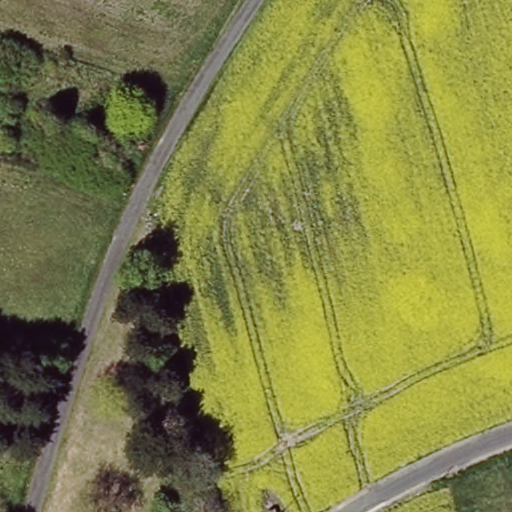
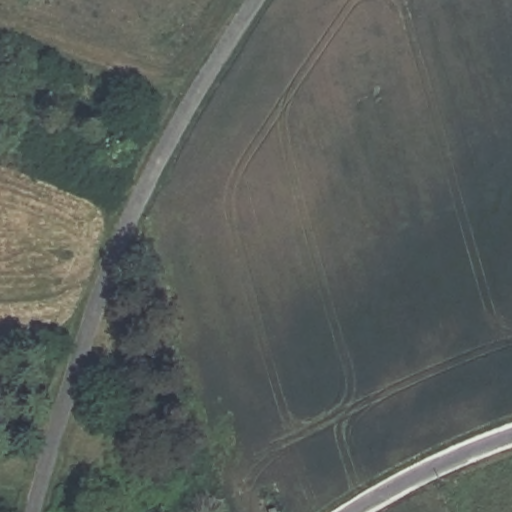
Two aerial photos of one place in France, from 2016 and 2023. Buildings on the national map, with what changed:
unchanged [(316,493),(324,504),(314,512),(310,512),(303,502),(316,493)]

